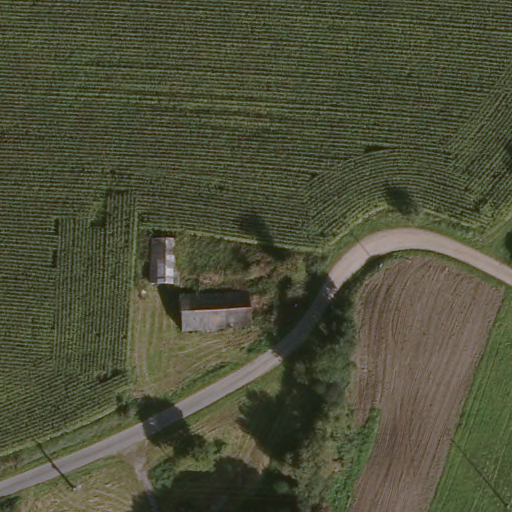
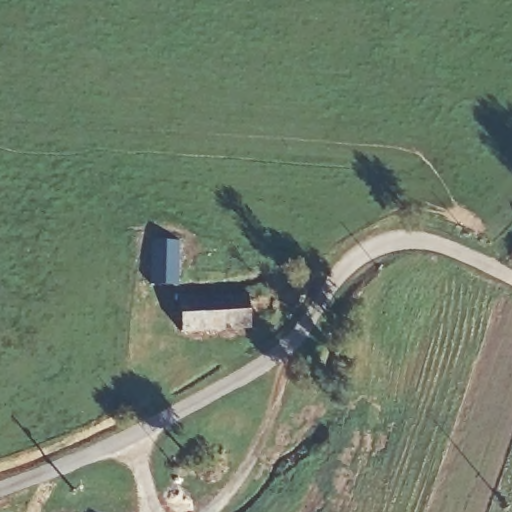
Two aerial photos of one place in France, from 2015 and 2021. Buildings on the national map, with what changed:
unchanged [(176,276),(148,280),(144,237),(173,235),(176,276)]
unchanged [(250,325),(181,332),(179,299),(249,293),(250,325)]

